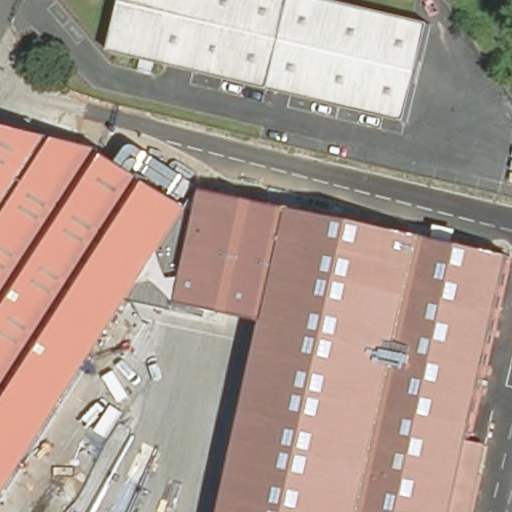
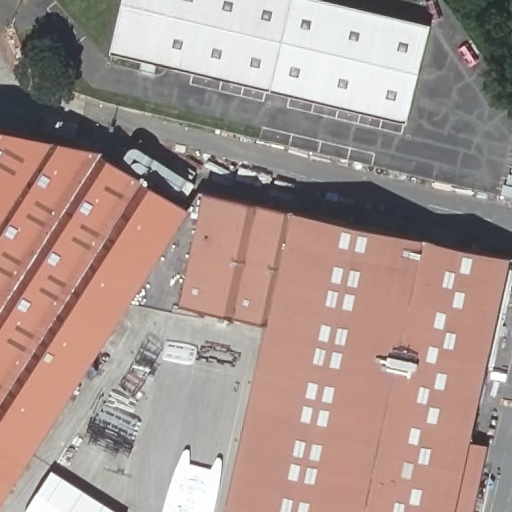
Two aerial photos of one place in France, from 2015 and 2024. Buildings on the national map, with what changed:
unchanged [(137,55),(106,47),(118,0),(342,0),(425,20),(402,119),(152,59),(149,71),(135,67),(137,55)]
unchanged [(105,158),(185,211),(0,502),(0,127),(105,153),(105,154),(105,158)]
unchanged [(474,396),(449,512),(225,512),(266,323),(177,304),(202,187),(505,252),(474,396)]
new [(118,512),(27,512),(54,471),(118,512)]
demolished [(104,486),(119,489),(115,505),(100,502),(104,486)]

